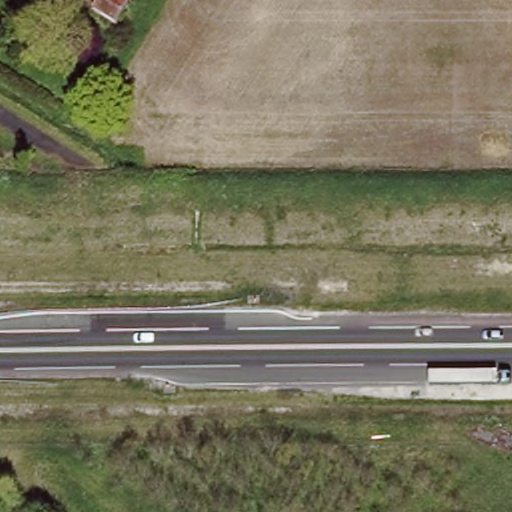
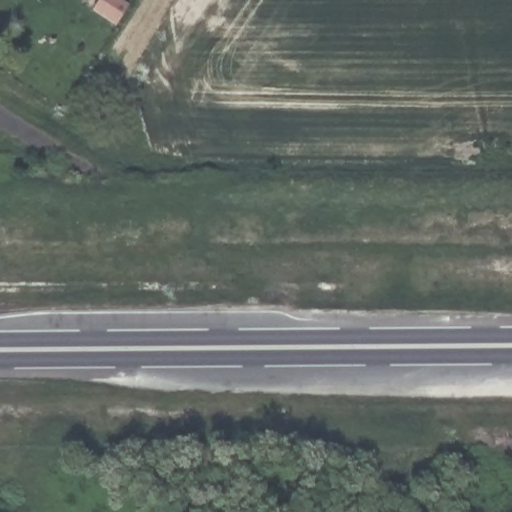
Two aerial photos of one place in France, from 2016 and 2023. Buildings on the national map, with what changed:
unchanged [(118,0),(129,7),(115,26),(92,10),(99,0),(118,0)]

